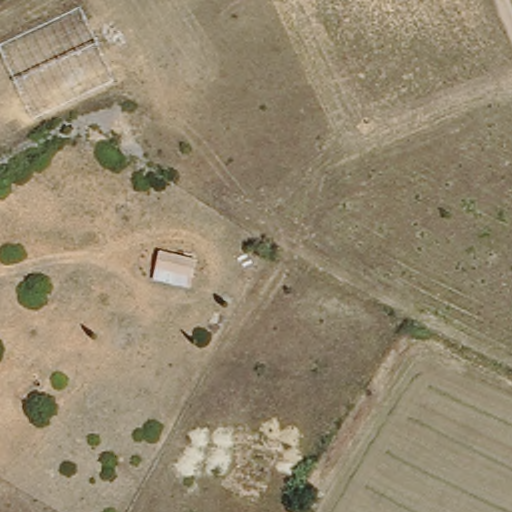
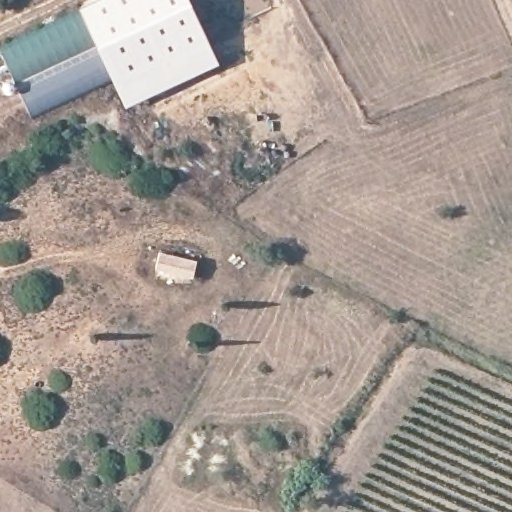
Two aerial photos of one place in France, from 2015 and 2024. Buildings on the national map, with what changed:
new [(188,0),(204,32),(114,78),(78,10),(77,6),(88,0),(188,0)]
new [(78,10),(114,78),(32,117),(0,49),(0,45),(78,10)]
new [(204,32),(216,57),(126,102),(114,78),(204,32)]
unchanged [(194,257),(189,285),(152,277),(157,250),(194,257)]

